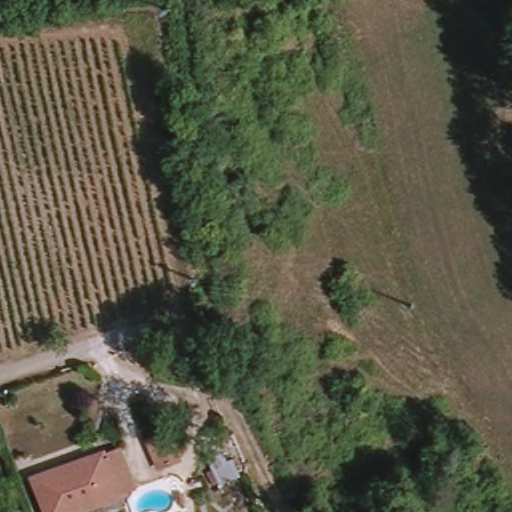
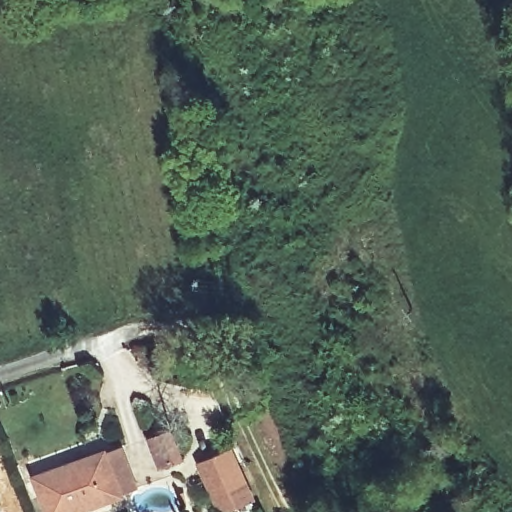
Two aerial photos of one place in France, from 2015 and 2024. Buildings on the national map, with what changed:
unchanged [(143,441),(156,436),(165,434),(174,462),(165,465),(152,469),(143,441)]
new [(256,498),(226,512),(216,512),(193,463),(232,446),(256,498)]
unchanged [(128,493),(113,498),(103,501),(70,512),(41,512),(30,476),(98,453),(113,448),(128,493)]

